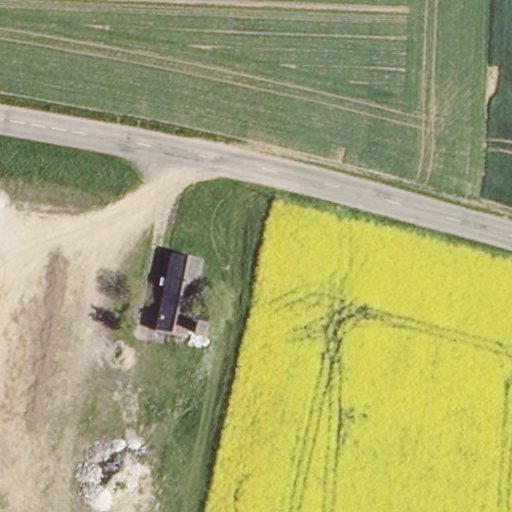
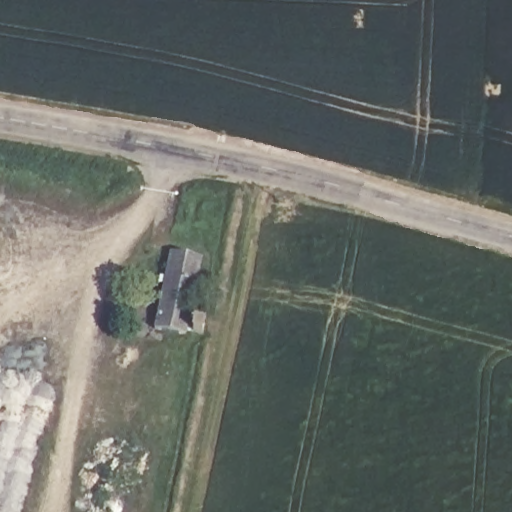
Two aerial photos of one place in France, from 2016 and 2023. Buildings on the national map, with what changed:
unchanged [(188,335),(157,329),(173,253),(203,258),(188,335)]

